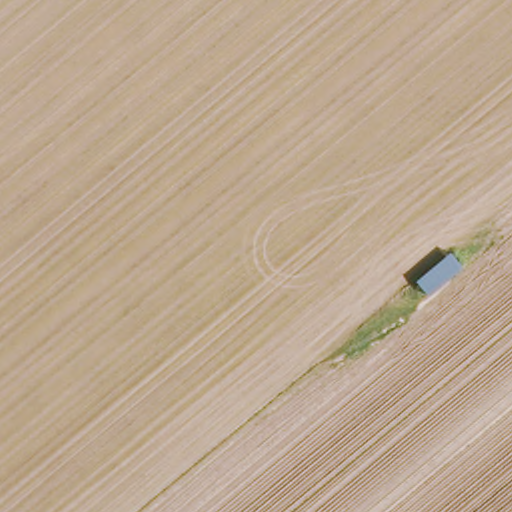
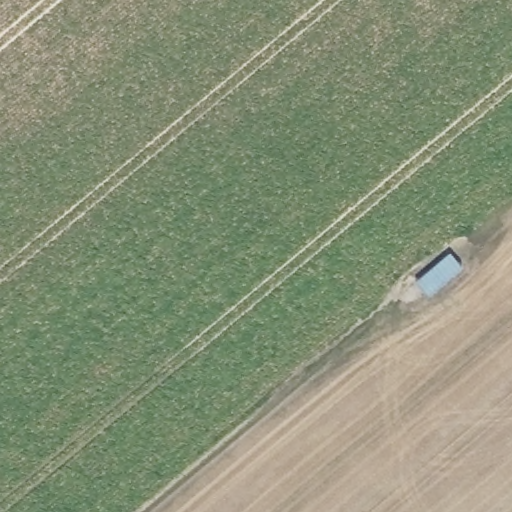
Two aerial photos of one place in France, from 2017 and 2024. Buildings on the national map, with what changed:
unchanged [(465,270),(428,294),(417,280),(454,254),(465,270)]

